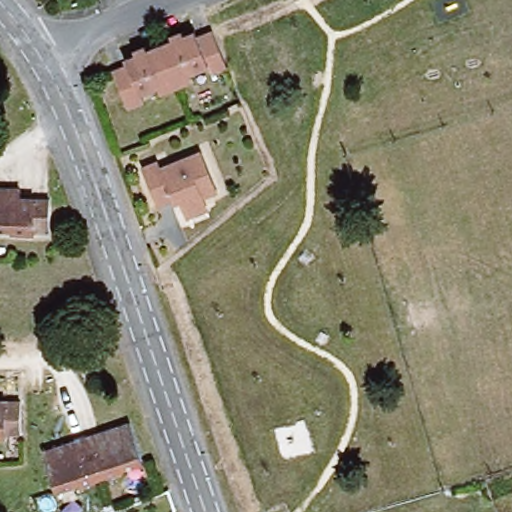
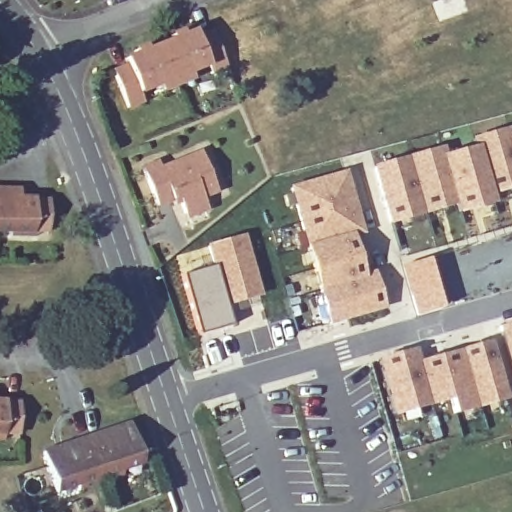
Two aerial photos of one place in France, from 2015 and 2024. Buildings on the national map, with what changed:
unchanged [(157,86),(140,94),(143,103),(128,109),(112,73),(127,67),(124,60),(136,55),(134,50),(181,32),(183,36),(193,32),(196,37),(211,32),(225,70),(210,75),(205,66),(189,74),(191,80),(160,92),(157,86)]
new [(442,146),(445,155),(475,148),(472,137),(508,127),(511,135),(512,134),(512,190),(492,195),(494,204),(458,214),(455,205),(387,224),(371,167),(442,146)]
unchanged [(186,222),(183,215),(177,200),(156,206),(142,170),(157,165),(160,170),(200,154),(216,191),(201,197),(204,205),(207,213),(186,222)]
new [(289,186),(345,171),(364,235),(353,239),(362,273),(374,270),(385,309),(330,325),(289,186)]
unchanged [(22,201),(49,202),(49,234),(36,234),(36,242),(11,240),(12,232),(0,232),(0,191),(22,191),(22,201)]
new [(210,265),(204,244),(239,234),(257,301),(223,310),(229,332),(195,341),(176,275),(210,265)]
new [(443,307),(416,315),(401,265),(429,257),(443,307)]
new [(512,322),(512,379),(498,325),(512,322)]
new [(378,360),(415,349),(418,361),(490,342),(506,400),(454,414),(450,400),(393,416),(378,360)]
unchanged [(22,400),(20,429),(7,430),(7,437),(0,437),(0,399),(22,400)]
unchanged [(120,468),(122,475),(77,490),(75,485),(57,490),(45,456),(131,427),(142,460),(120,468)]

